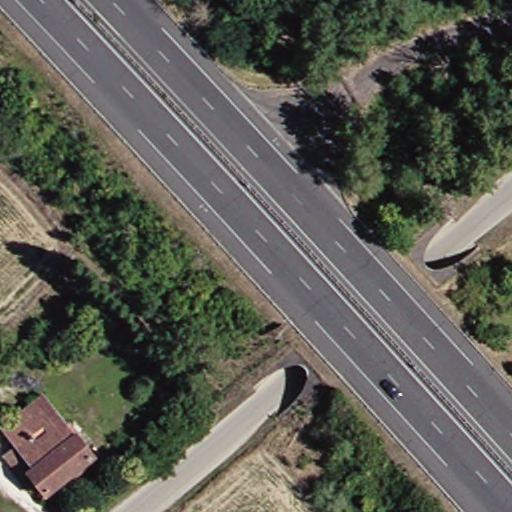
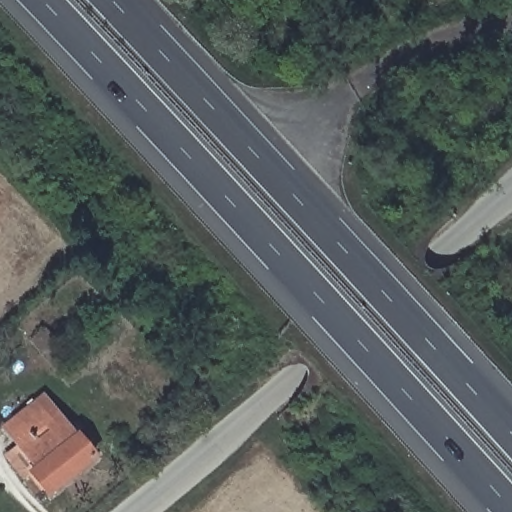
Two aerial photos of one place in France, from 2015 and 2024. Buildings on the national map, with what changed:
unchanged [(10,458),(21,450),(4,427),(46,395),(70,426),(77,435),(95,457),(46,495),(30,472),(25,477),(10,458)]

